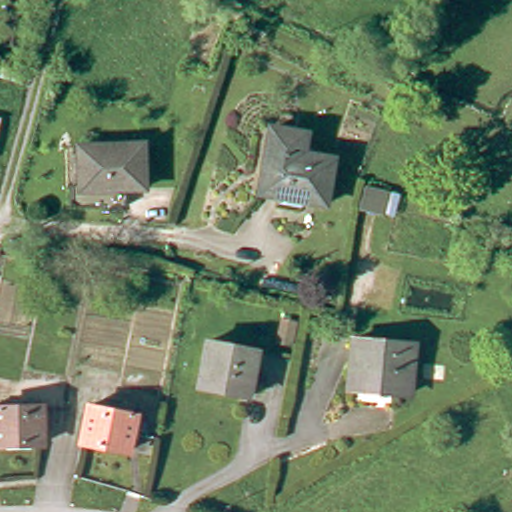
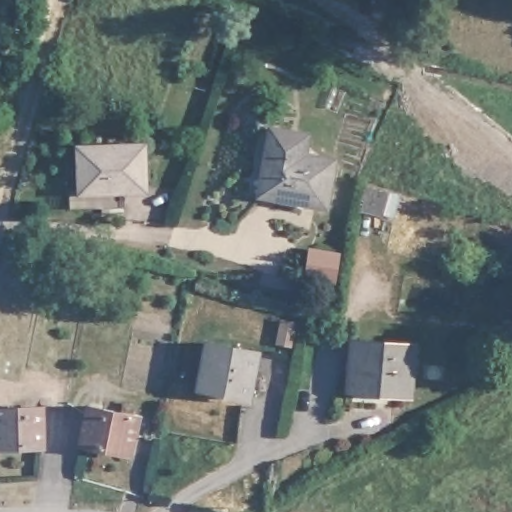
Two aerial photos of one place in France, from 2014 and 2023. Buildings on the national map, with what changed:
unchanged [(328,161),(325,209),(260,204),(265,136),(300,140),(298,159),(328,161)]
unchanged [(137,138),(143,183),(127,185),(130,202),(75,210),(71,189),(82,188),(75,146),(137,138)]
new [(316,251),(338,254),(335,279),(313,277),(316,251)]
unchanged [(417,352),(411,398),(353,391),(359,345),(417,352)]
unchanged [(253,355),(245,401),(198,392),(207,346),(253,355)]
unchanged [(85,445),(91,408),(125,414),(125,406),(137,408),(136,416),(140,417),(147,418),(145,433),(137,432),(133,454),(85,445)]
unchanged [(0,452),(0,415),(43,415),(43,452),(0,452)]

